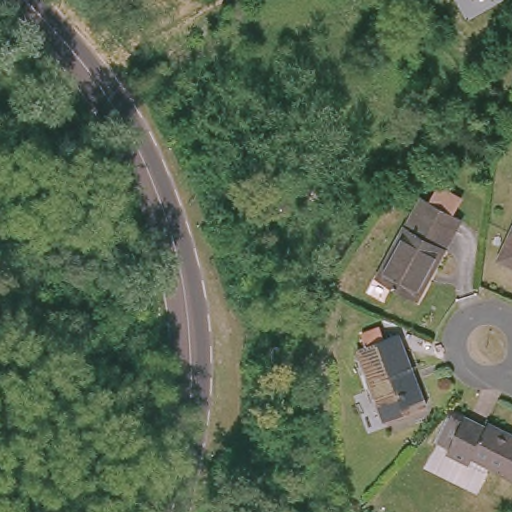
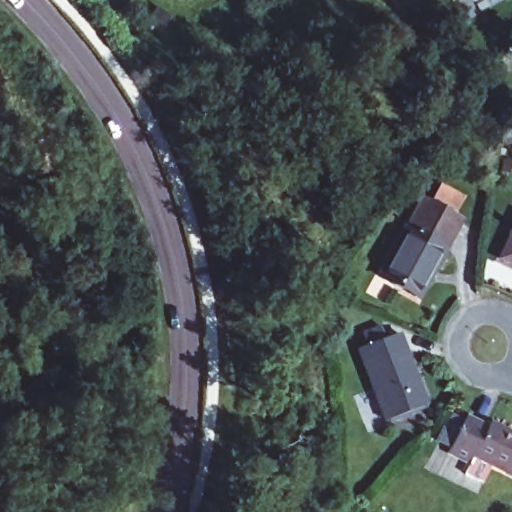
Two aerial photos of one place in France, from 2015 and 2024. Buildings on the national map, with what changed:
unchanged [(457,214),(416,291),(378,271),(420,194),(457,214)]
unchanged [(500,256),(512,234),(512,263),(500,256)]
unchanged [(403,338),(430,406),(390,422),(362,353),(403,338)]
unchanged [(480,420),(482,416),(512,432),(512,472),(467,449),(462,457),(441,446),(460,409),(480,420)]

